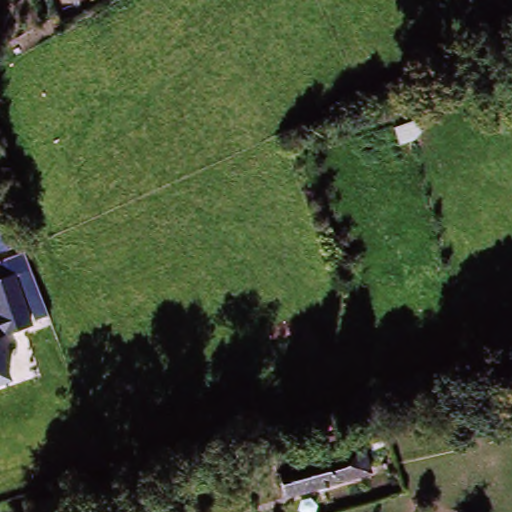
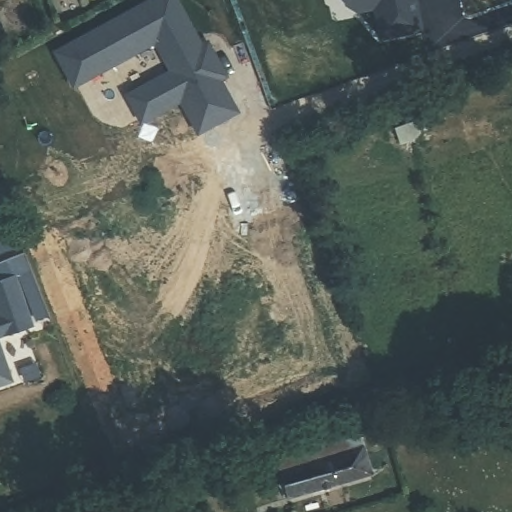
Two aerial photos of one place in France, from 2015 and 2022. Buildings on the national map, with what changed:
new [(207,38),(227,78),(222,81),(237,111),(199,131),(181,99),(143,120),(129,95),(170,72),(153,44),(73,86),(54,51),(145,0),(178,0),(201,42),(207,38)]
new [(381,35),(375,8),(357,10),(345,1),(344,0),(415,0),(420,28),(381,35)]
unchanged [(35,325),(0,336),(0,282),(16,277),(35,325)]
unchanged [(0,382),(0,338),(13,378),(0,382)]
unchanged [(365,489),(294,511),(282,469),(352,448),(365,489)]

